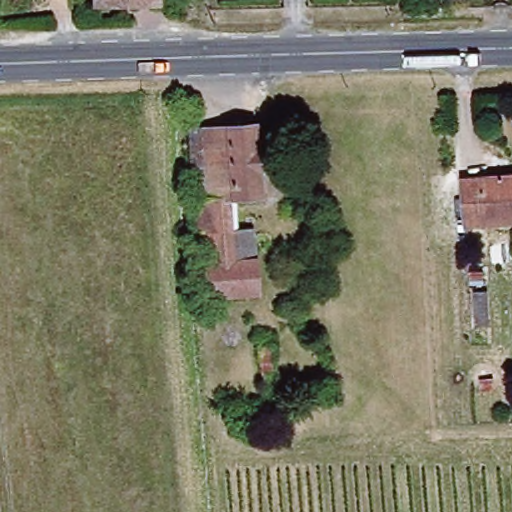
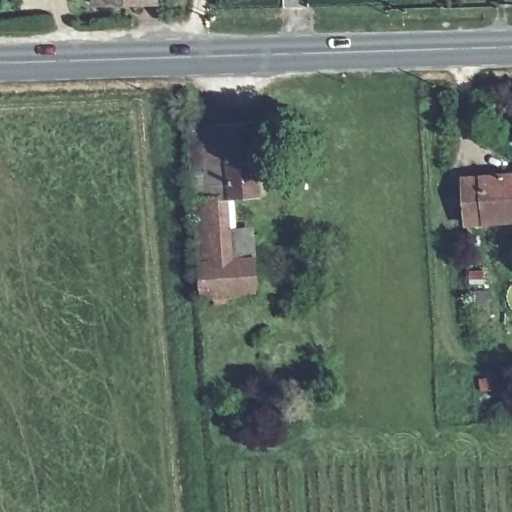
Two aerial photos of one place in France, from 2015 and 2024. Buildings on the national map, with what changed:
unchanged [(158,4),(94,5),(93,0),(157,0),(158,4)]
unchanged [(184,130),(249,124),(256,195),(230,198),(232,229),(193,232),(184,130)]
unchanged [(463,180),(512,176),(512,223),(467,226),(463,180)]
unchanged [(254,294),(198,299),(193,232),(232,229),(248,227),(254,294)]

